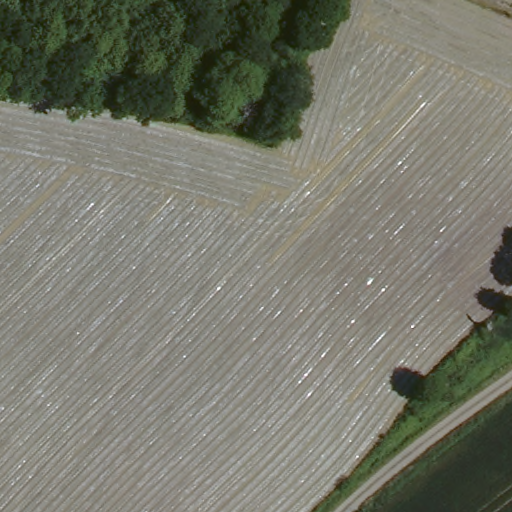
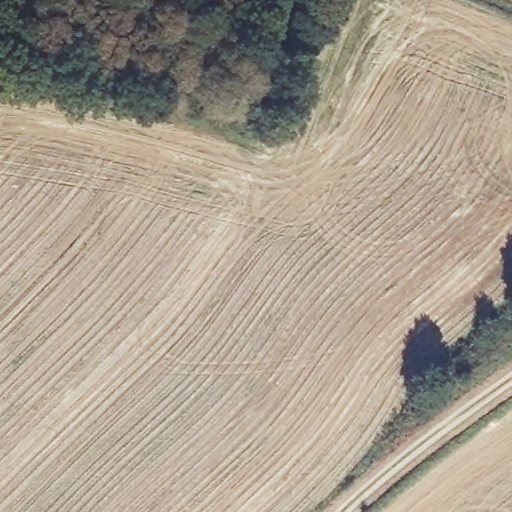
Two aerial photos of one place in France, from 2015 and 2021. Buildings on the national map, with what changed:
[]

